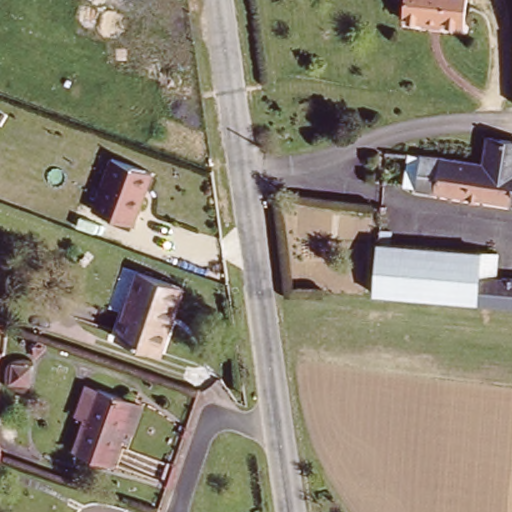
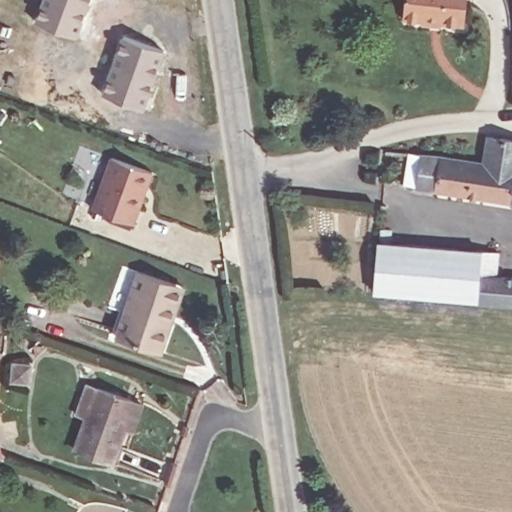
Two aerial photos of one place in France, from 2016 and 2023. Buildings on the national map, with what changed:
new [(91,0),(76,38),(34,22),(42,0),(91,0)]
unchanged [(407,12),(408,0),(469,0),(467,19),(407,12)]
new [(144,109),(102,94),(121,37),(164,50),(144,109)]
unchanged [(401,184),(406,160),(435,155),(483,165),(488,137),(512,142),(512,203),(401,184)]
unchanged [(112,152),(152,167),(134,219),(94,204),(112,152)]
unchanged [(476,305),(371,295),(376,242),(482,252),(476,305)]
unchanged [(476,305),(482,252),(496,254),(494,277),(512,280),(512,308),(476,305)]
unchanged [(114,342),(136,275),(169,285),(182,290),(169,326),(159,357),(114,342)]
unchanged [(0,352),(1,351),(0,357),(0,352)]
unchanged [(32,365),(31,385),(10,383),(12,362),(32,365)]
unchanged [(138,404),(129,431),(121,430),(108,465),(71,453),(92,390),(130,401),(138,404)]
demolished [(0,447),(0,430),(2,446),(0,447)]
unchanged [(0,459),(0,442),(2,460),(0,459)]

